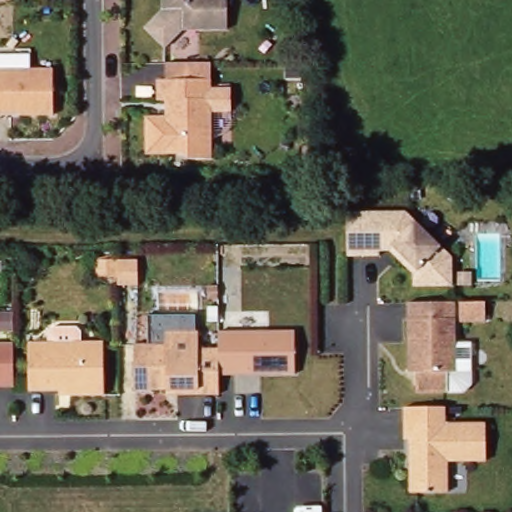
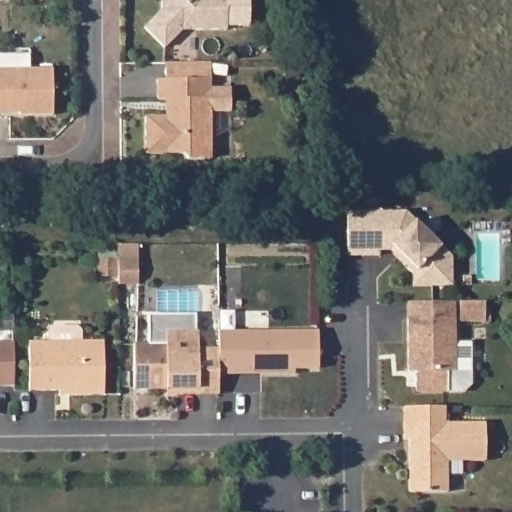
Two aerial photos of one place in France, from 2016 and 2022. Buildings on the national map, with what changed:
unchanged [(163,0),(228,0),(228,24),(183,24),(163,4),(163,0)]
unchanged [(54,109),(20,109),(20,103),(0,103),(0,63),(54,63),(54,109)]
unchanged [(211,74),(212,153),(189,153),(184,148),(147,149),(146,111),(166,111),(166,95),(159,95),(159,74),(211,74)]
unchanged [(348,207),(406,206),(453,251),(453,280),(414,280),(414,267),(391,245),(380,245),(380,250),(348,250),(348,207)]
unchanged [(117,259),(117,275),(99,275),(99,259),(117,259)]
unchanged [(119,259),(139,259),(139,284),(119,284),(119,259)]
unchanged [(409,371),(409,318),(409,301),(421,301),(456,301),(456,317),(456,370),(449,370),(449,391),(417,391),(417,371),(409,371)]
unchanged [(461,301),(486,301),(486,321),(461,321),(461,301)]
unchanged [(29,336),(49,336),(49,325),(53,321),(78,321),(81,325),(81,336),(104,336),(105,389),(69,389),(69,384),(30,384),(29,336)]
unchanged [(167,384),(134,384),(134,338),(166,338),(166,326),(199,325),(199,343),(219,343),(219,369),(219,388),(199,388),(167,389),(167,384)]
unchanged [(219,369),(219,343),(219,326),(295,325),(295,368),(262,368),(235,368),(219,369)]
unchanged [(14,385),(0,385),(0,343),(14,342),(14,385)]
unchanged [(410,433),(405,433),(404,401),(446,401),(446,417),(486,417),(486,455),(448,455),(449,486),(411,486),(410,433)]

